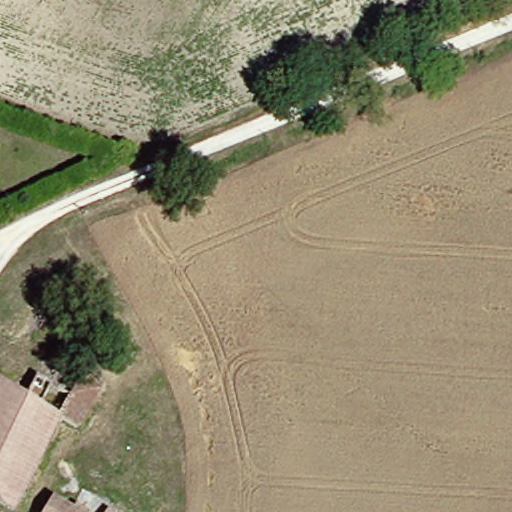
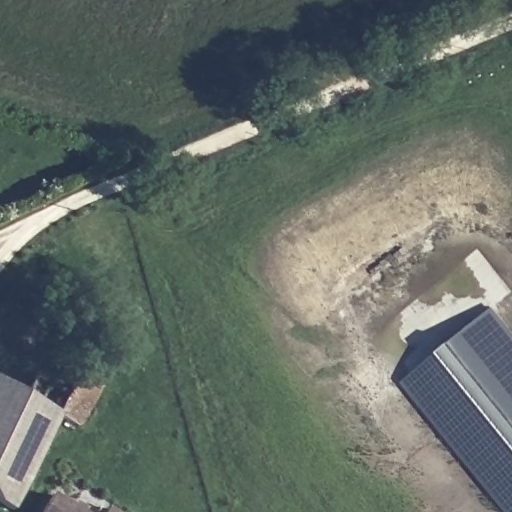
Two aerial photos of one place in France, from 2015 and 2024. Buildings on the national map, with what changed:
new [(512,512),(505,512),(401,385),(493,310),(512,333),(512,512)]
unchanged [(76,416),(70,433),(51,424),(18,489),(0,480),(0,378),(28,393),(35,381),(40,368),(54,374),(75,384),(62,407),(76,416)]
unchanged [(2,512),(0,511),(0,480),(18,489),(7,512),(2,512)]
new [(80,512),(43,512),(53,495),(80,512)]
demolished [(123,512),(104,512),(109,504),(123,512)]
new [(109,512),(107,512),(107,511),(109,512)]

